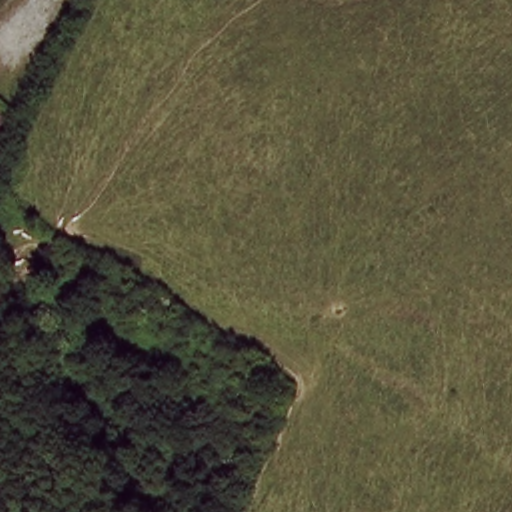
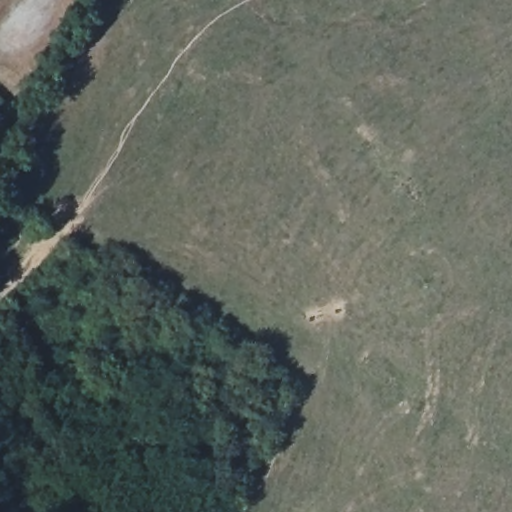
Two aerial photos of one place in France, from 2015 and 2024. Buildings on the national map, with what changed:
[]

